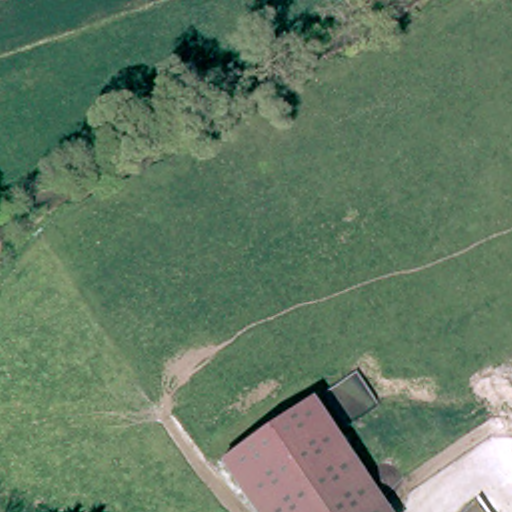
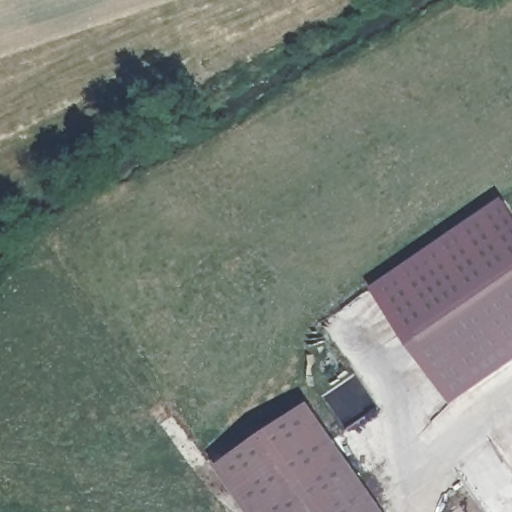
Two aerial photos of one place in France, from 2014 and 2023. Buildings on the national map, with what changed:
new [(452,401),(372,285),(505,197),(512,208),(512,361),(452,401)]
unchanged [(218,463),(309,403),(369,490),(383,512),(250,512),(236,490),(218,463)]

